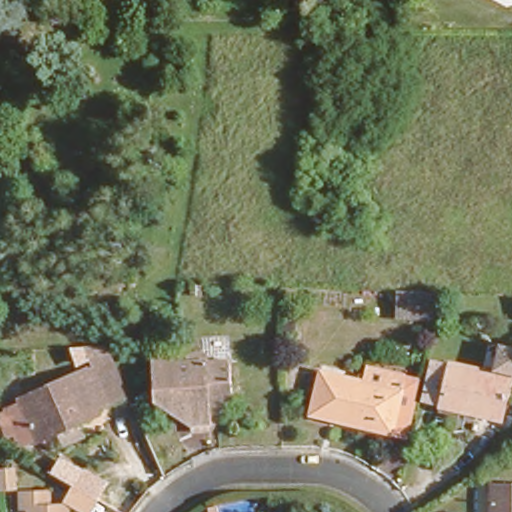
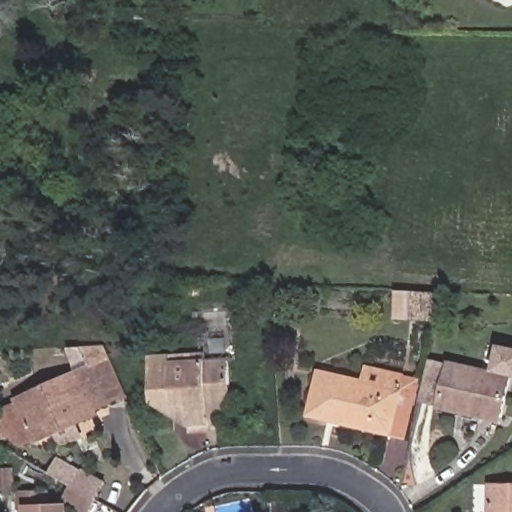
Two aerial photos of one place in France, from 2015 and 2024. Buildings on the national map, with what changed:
unchanged [(391,322),(393,288),(441,291),(439,326),(391,322)]
unchanged [(81,426),(86,436),(62,451),(54,435),(26,447),(5,436),(0,425),(0,409),(90,365),(81,346),(106,346),(129,397),(81,426)]
unchanged [(445,361),(495,372),(500,347),(512,349),(512,376),(510,376),(500,421),(437,406),(445,361)]
unchanged [(154,353),(175,352),(175,361),(209,358),(230,357),(231,368),(232,391),(211,427),(191,427),(155,397),(154,353)]
unchanged [(434,406),(424,403),(432,359),(445,361),(434,406)]
unchanged [(302,415),(311,373),(361,383),(365,372),(398,380),(412,382),(400,437),(385,434),(302,415)]
unchanged [(71,501),(71,512),(33,512),(33,502),(26,502),(26,478),(52,477),(54,502),(71,501)]
unchanged [(512,478),(512,512),(487,512),(486,478),(512,478)]
unchanged [(268,512),(268,501),(281,501),(281,512),(268,512)]
unchanged [(211,512),(206,512),(205,507),(210,507),(211,512)]

